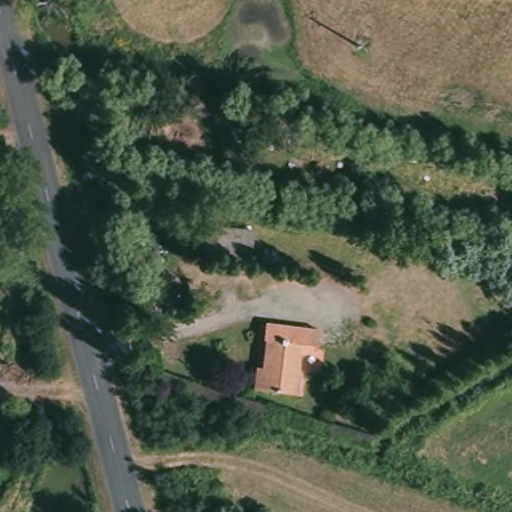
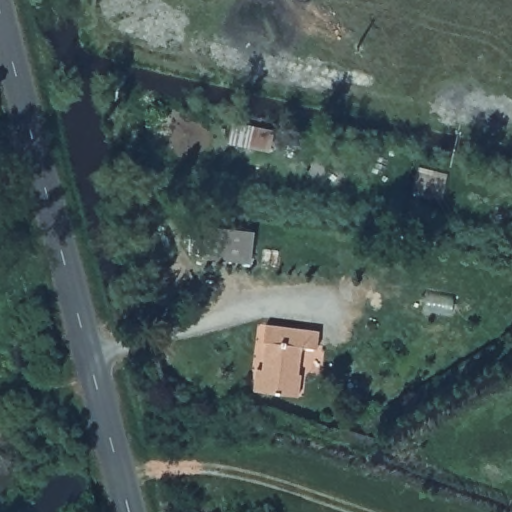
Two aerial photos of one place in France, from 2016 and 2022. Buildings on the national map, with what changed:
unchanged [(250,236),(248,265),(201,259),(206,231),(250,236)]
unchanged [(322,332),(319,352),(299,351),(299,396),(258,394),(257,374),(266,373),(264,347),(260,346),(264,328),(322,332)]

